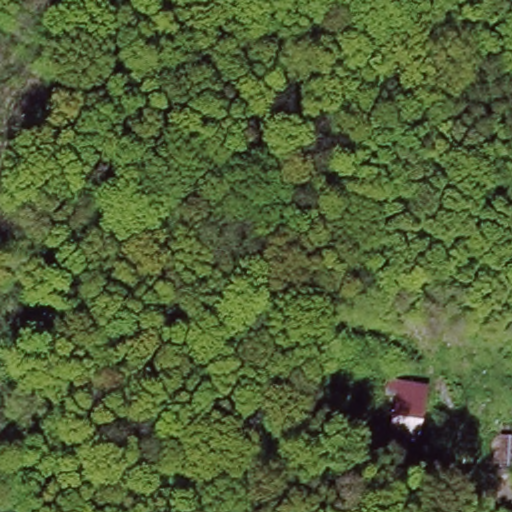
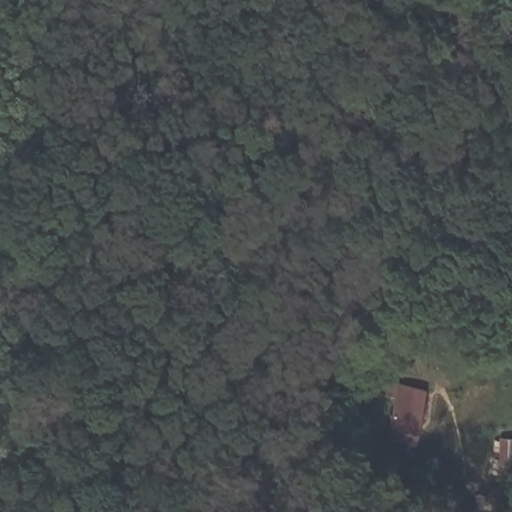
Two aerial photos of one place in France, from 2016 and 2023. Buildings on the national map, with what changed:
unchanged [(425,408),(414,454),(392,449),(399,415),(387,413),(390,399),(425,408)]

